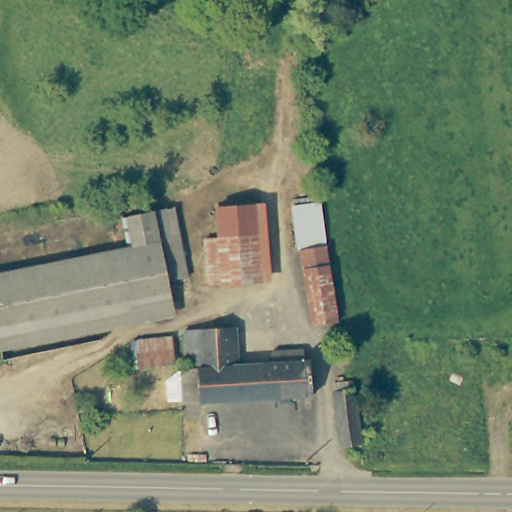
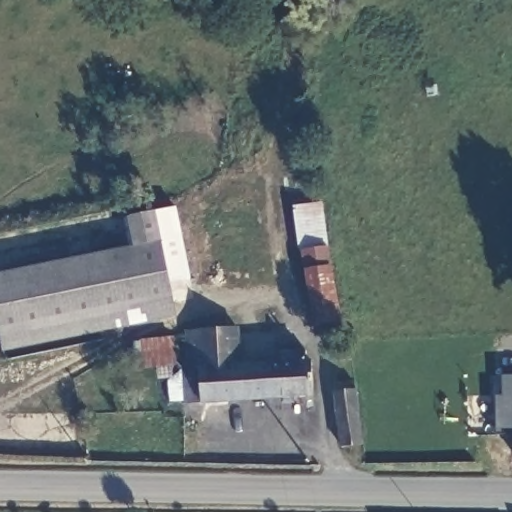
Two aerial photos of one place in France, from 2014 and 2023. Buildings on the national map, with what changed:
unchanged [(321,201),(339,320),(312,322),(296,203),(321,201)]
unchanged [(257,204),(262,280),(210,282),(207,237),(221,236),(219,205),(257,204)]
unchanged [(170,206),(184,274),(164,279),(149,210),(170,206)]
unchanged [(0,335),(0,271),(125,246),(119,216),(149,210),(164,279),(168,300),(0,335)]
unchanged [(189,366),(186,328),(235,325),(240,361),(273,361),(272,349),(306,348),(307,359),(312,359),(314,393),(184,401),(182,367),(189,366)]
unchanged [(174,337),(175,361),(134,364),(132,339),(174,337)]
new [(496,434),(497,396),(503,396),(502,375),(512,375),(512,434),(496,434)]
unchanged [(335,389),(356,386),(362,441),(341,444),(335,389)]

